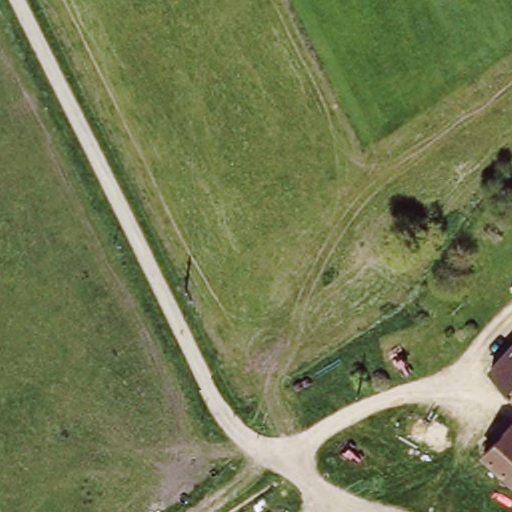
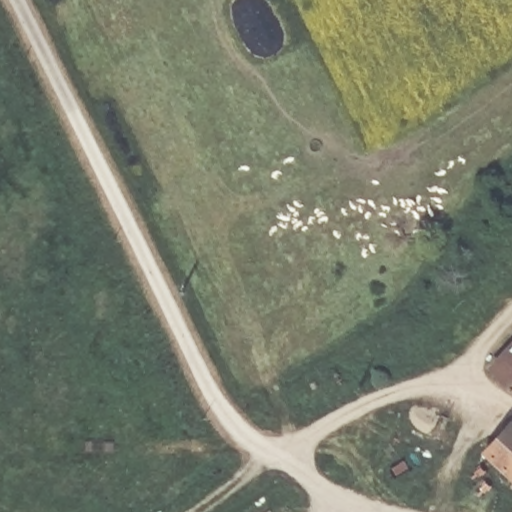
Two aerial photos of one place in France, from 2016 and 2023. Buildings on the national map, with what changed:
unchanged [(512,387),(491,366),(512,345),(512,387)]
unchanged [(512,480),(488,457),(512,433),(512,480)]

